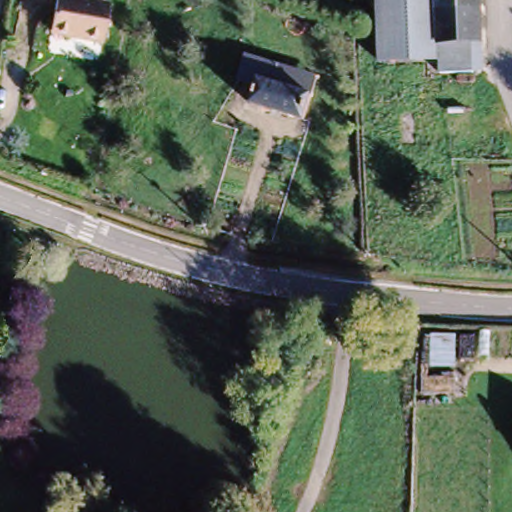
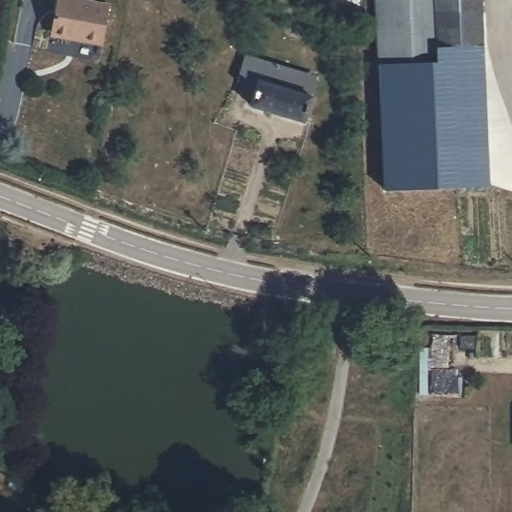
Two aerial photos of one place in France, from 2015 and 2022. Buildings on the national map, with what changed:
unchanged [(98,45),(47,35),(54,0),(81,0),(106,5),(98,45)]
unchanged [(437,46),(435,66),(375,65),(374,0),(436,0),(437,46)]
unchanged [(480,45),(437,46),(436,0),(480,0),(480,45)]
unchanged [(481,77),(435,77),(435,66),(437,46),(480,45),(481,77)]
unchanged [(256,92),(249,91),(235,85),(245,56),(258,60),(265,62),(285,67),(283,79),(303,85),(305,74),(317,78),(311,102),(305,127),(251,110),(256,92)]
new [(435,66),(435,77),(481,77),(485,77),(490,185),(383,189),(378,65),(435,66)]
new [(490,336),(490,353),(460,355),(457,372),(428,372),(430,337),(490,336)]

